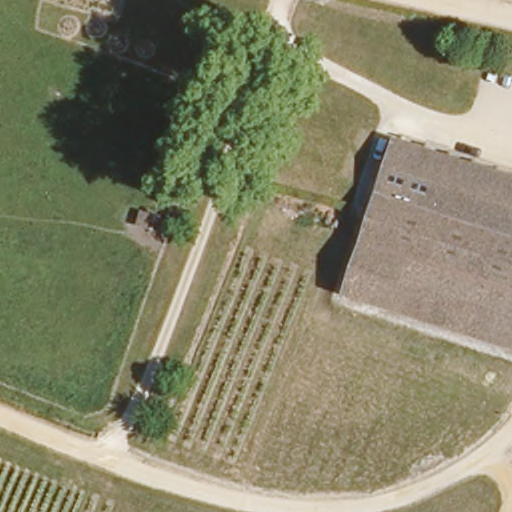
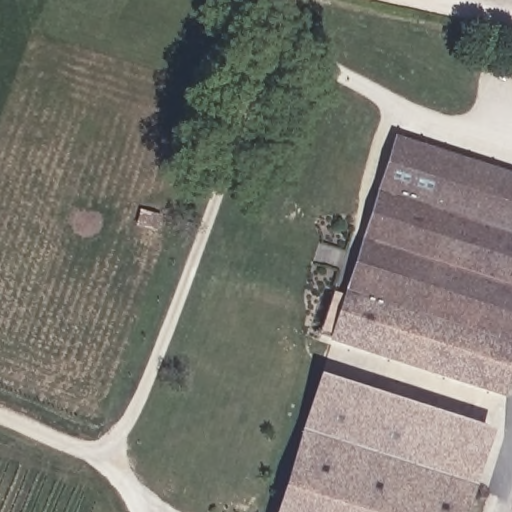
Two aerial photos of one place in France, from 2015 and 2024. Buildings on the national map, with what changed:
unchanged [(392,133),(512,171),(512,345),(338,289),(392,133)]
new [(346,291),(512,345),(512,376),(503,399),(330,342),(346,291)]
new [(318,374),(489,428),(465,512),(274,512),(318,374)]

